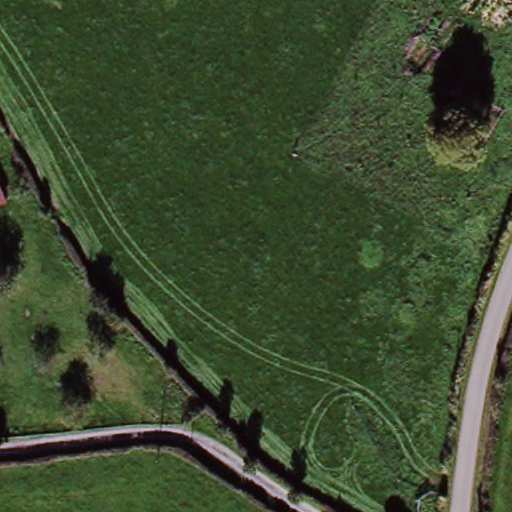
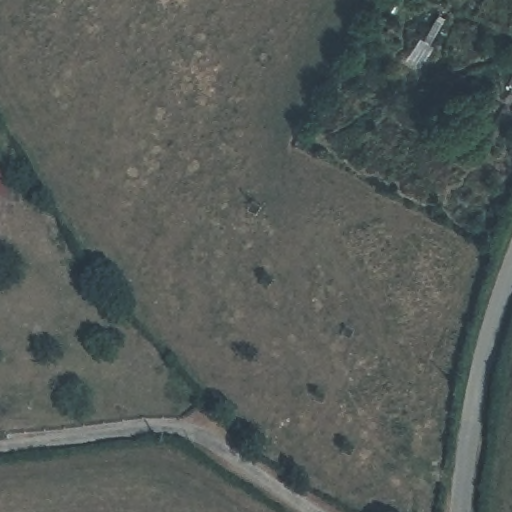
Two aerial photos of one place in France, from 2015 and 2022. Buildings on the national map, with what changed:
unchanged [(0,200),(0,173),(9,196),(0,200)]

